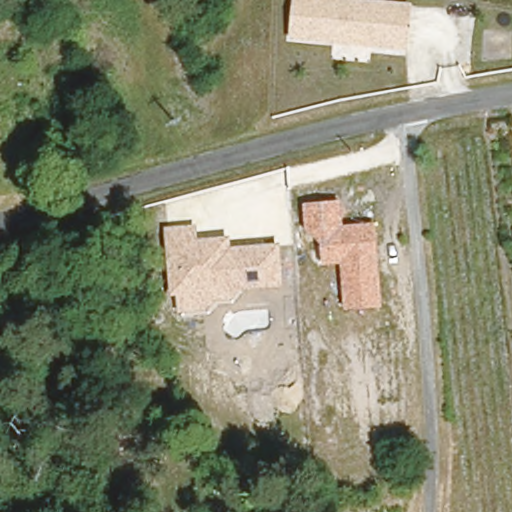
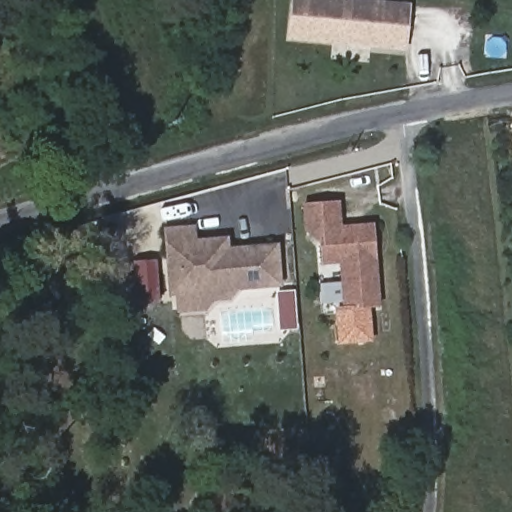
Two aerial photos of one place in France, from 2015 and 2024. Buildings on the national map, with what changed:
unchanged [(407,49),(293,40),(296,0),(328,0),(410,7),(407,49)]
unchanged [(303,204),(339,201),(342,226),(374,223),(381,308),(343,311),(339,265),(322,266),(320,244),(305,232),(303,204)]
unchanged [(232,300),(214,302),(207,310),(177,312),(175,295),(170,295),(164,228),(196,225),(198,239),(230,236),(230,247),(280,243),(282,286),(239,289),(232,300)]
new [(343,311),(370,309),(373,342),(338,345),(336,307),(342,307),(343,311)]

